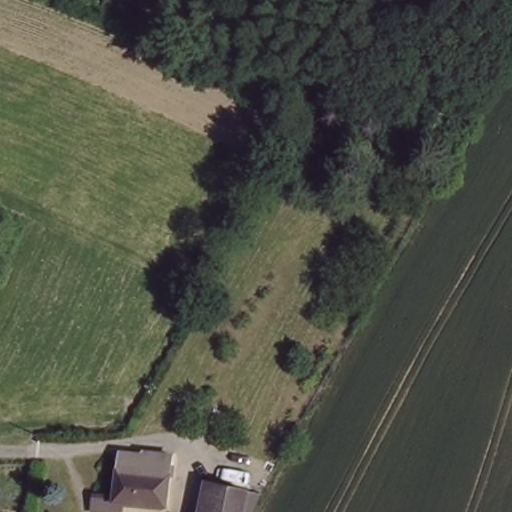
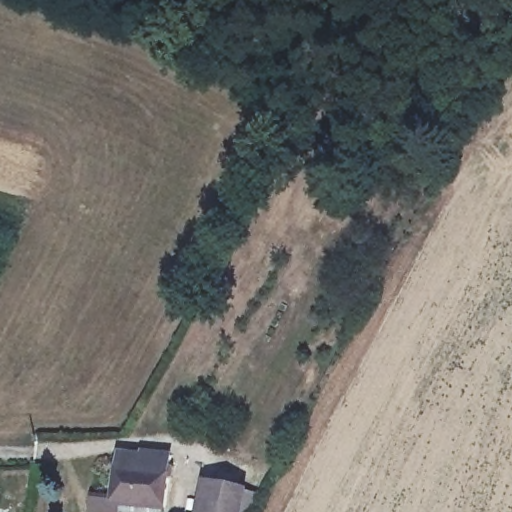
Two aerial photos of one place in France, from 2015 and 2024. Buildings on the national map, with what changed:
unchanged [(139,451),(174,455),(172,512),(143,512),(123,511),(123,512),(93,512),(93,493),(115,492),(120,455),(139,457),(139,451)]
unchanged [(249,494),(246,512),(198,512),(204,481),(249,494)]

